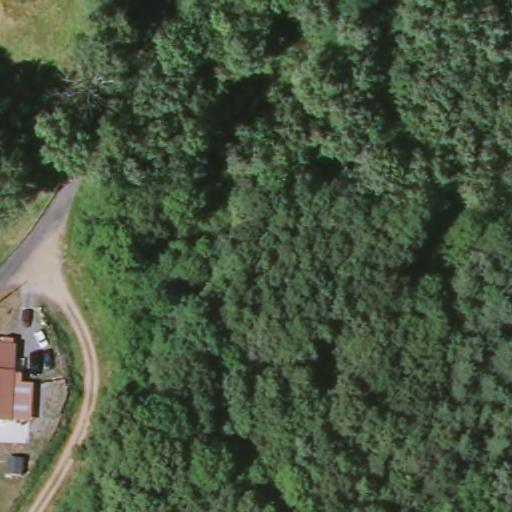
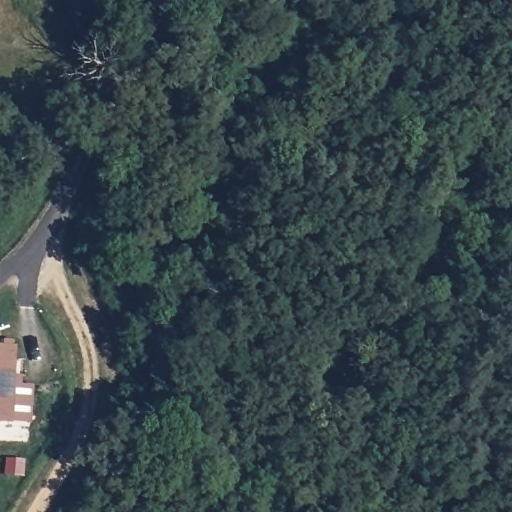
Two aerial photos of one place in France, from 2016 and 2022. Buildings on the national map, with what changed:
unchanged [(11,373),(18,374),(18,383),(32,384),(28,420),(0,419),(0,344),(1,344),(2,339),(13,340),(11,373)]

